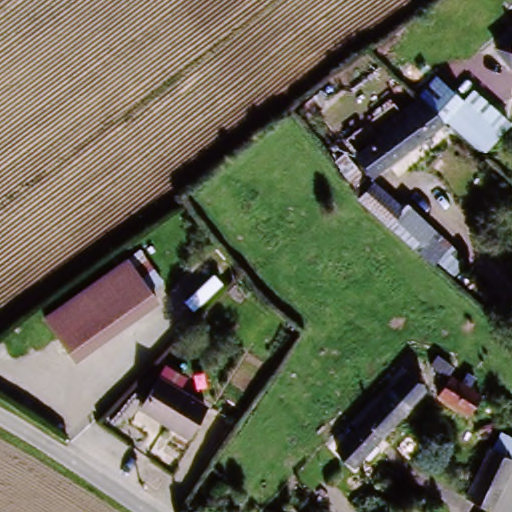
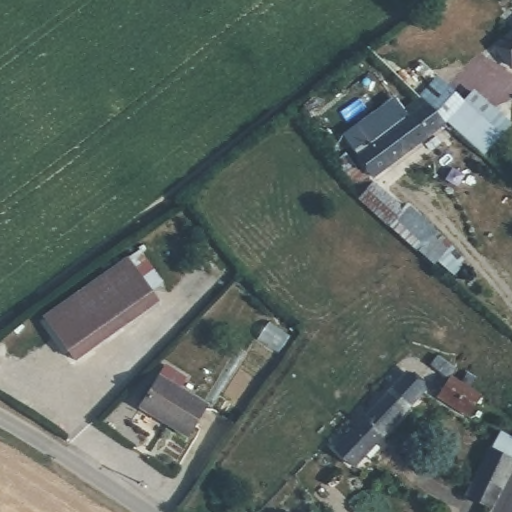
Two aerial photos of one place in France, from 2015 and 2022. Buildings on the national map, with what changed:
unchanged [(512,68),(498,51),(512,40),(512,68)]
unchanged [(391,144),(386,137),(422,110),(439,92),(441,91),(464,113),(448,130),(446,132),(379,186),(363,165),(391,144)]
unchanged [(464,113),(467,110),(503,144),(484,164),(448,130),(464,113)]
unchanged [(376,221),(360,207),(362,204),(345,182),(356,174),(367,187),(369,185),(404,217),(391,234),(376,221)]
unchanged [(404,217),(449,257),(435,273),(391,234),(404,217)]
unchanged [(75,371),(41,327),(123,263),(134,255),(158,285),(147,294),(156,307),(75,371)]
unchanged [(404,374),(421,390),(373,443),(378,448),(368,458),(363,454),(352,466),(334,452),(404,374)]
unchanged [(158,381),(206,409),(188,439),(140,411),(158,381)]
unchanged [(448,381),(478,401),(466,421),(434,401),(448,381)]
unchanged [(464,497),(487,451),(494,436),(512,444),(512,455),(509,461),(488,507),(487,507),(464,497)]

